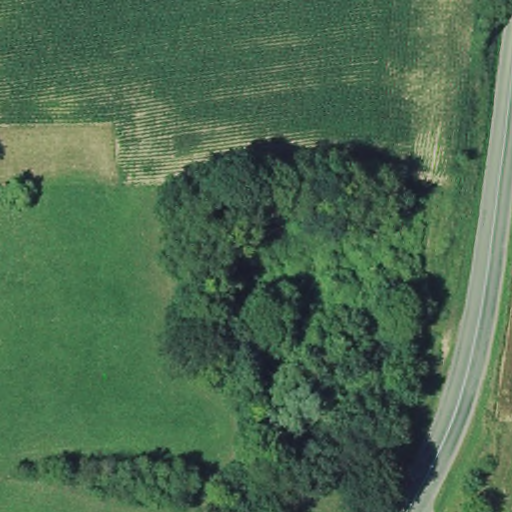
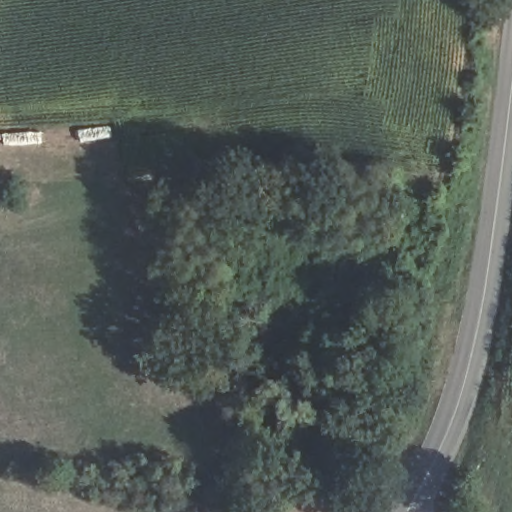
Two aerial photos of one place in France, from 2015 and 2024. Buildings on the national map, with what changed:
[]

